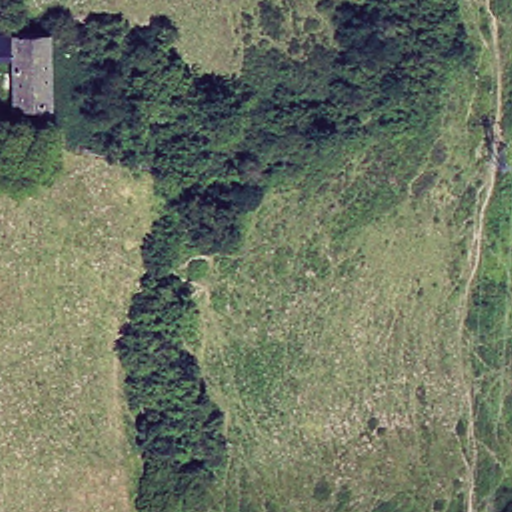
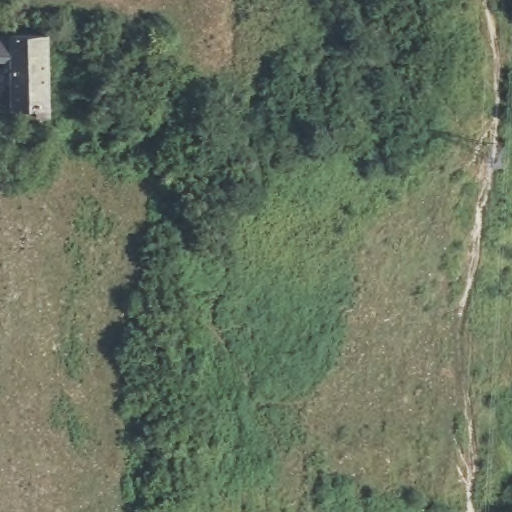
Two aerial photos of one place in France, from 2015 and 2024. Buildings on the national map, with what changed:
unchanged [(40,128),(40,114),(14,113),(10,65),(0,65),(0,38),(45,36),(50,114),(51,127),(40,128)]

